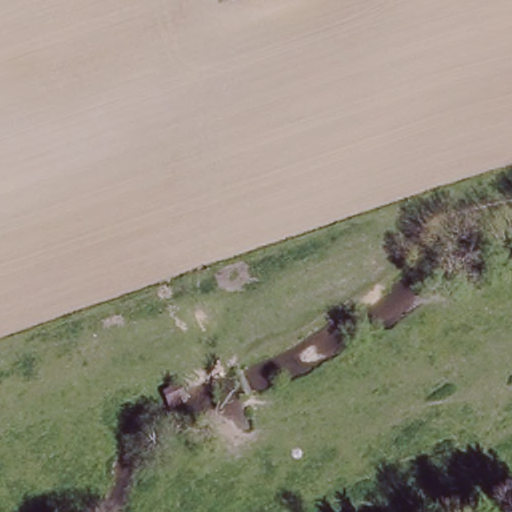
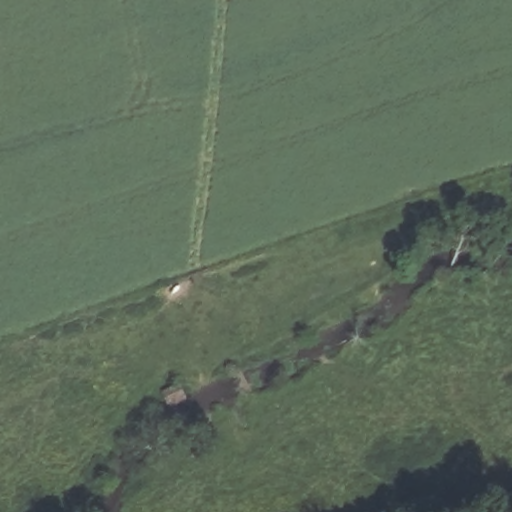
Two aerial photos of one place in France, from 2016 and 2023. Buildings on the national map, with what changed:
unchanged [(171,403),(169,391),(182,386),(183,398),(171,403)]

